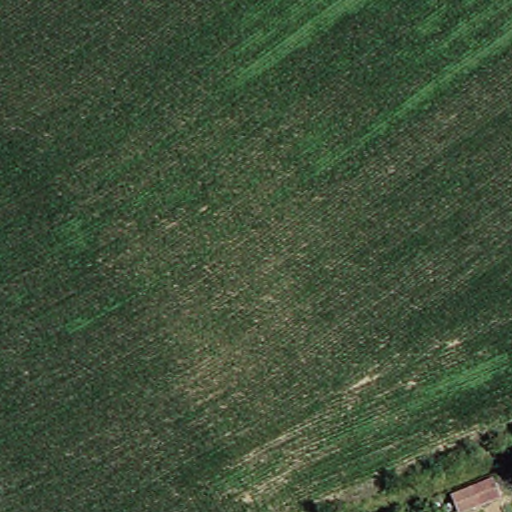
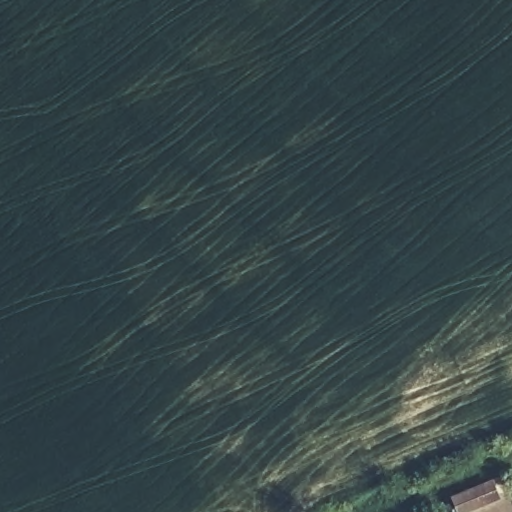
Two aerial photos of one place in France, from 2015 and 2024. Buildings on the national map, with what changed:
unchanged [(498,494),(457,511),(453,494),(492,477),(498,494)]

